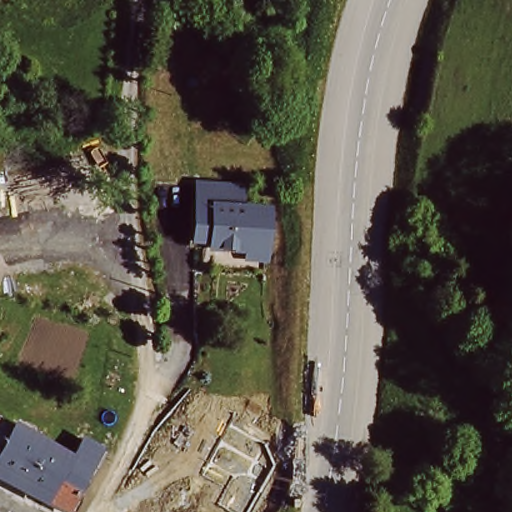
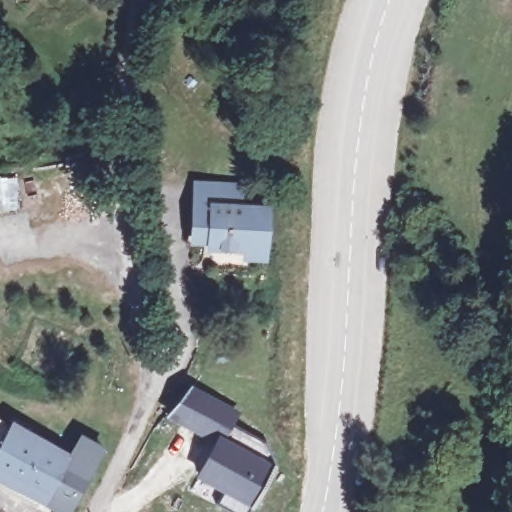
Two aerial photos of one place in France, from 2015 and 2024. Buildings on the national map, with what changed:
unchanged [(253,200),(251,220),(274,223),(270,265),(202,258),(206,196),(253,200)]
new [(176,416),(192,387),(228,408),(223,418),(258,439),(268,461),(240,512),(228,512),(210,501),(212,498),(218,485),(193,471),(200,457),(212,436),(176,416)]
unchanged [(76,441),(97,453),(68,512),(62,512),(0,480),(0,423),(69,457),(76,441)]

